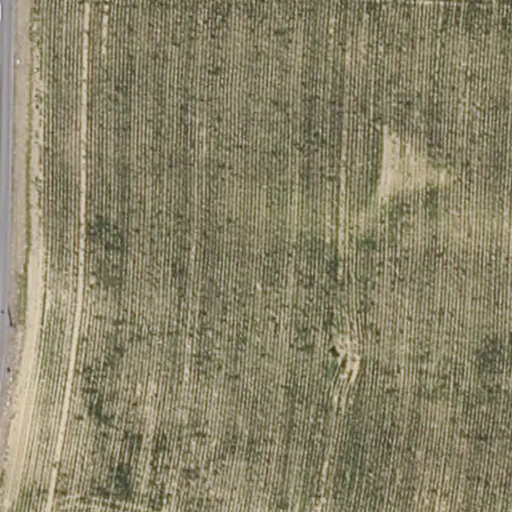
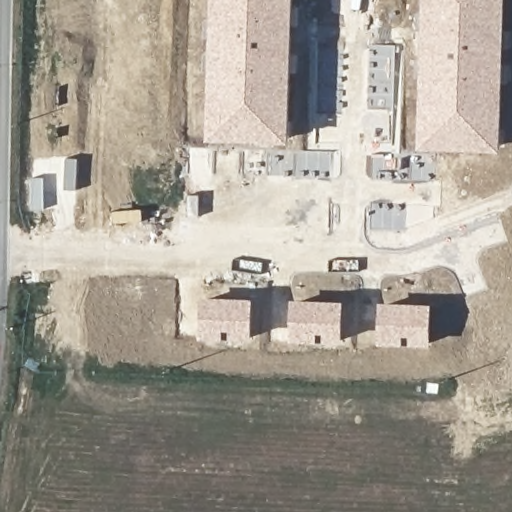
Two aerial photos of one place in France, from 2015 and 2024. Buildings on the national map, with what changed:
new [(209,140),(213,0),(295,0),(291,142),(209,140)]
new [(420,149),(424,0),(508,0),(503,150),(420,149)]
new [(252,340),(200,340),(202,297),(255,298),(252,340)]
new [(343,343),(291,342),(292,300),(346,301),(343,343)]
new [(431,346),(379,345),(380,301),(433,303),(431,346)]

